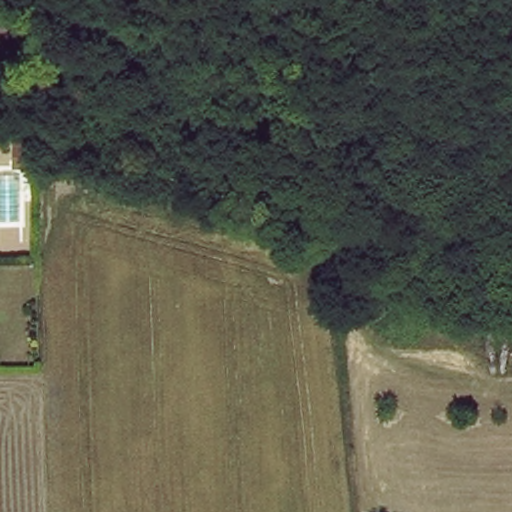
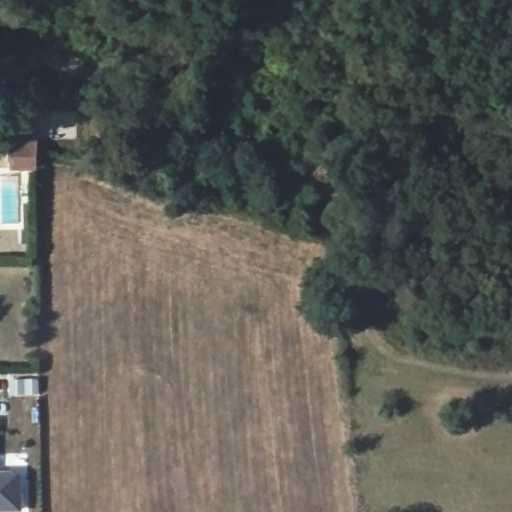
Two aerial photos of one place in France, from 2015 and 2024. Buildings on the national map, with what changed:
unchanged [(24,135),(47,137),(46,147),(44,157),(44,167),(21,166),(23,145),(24,135)]
new [(23,482),(23,512),(0,512),(0,472),(12,472),(23,482)]

